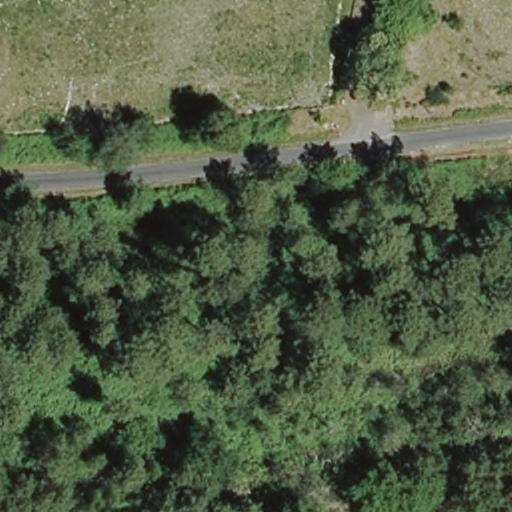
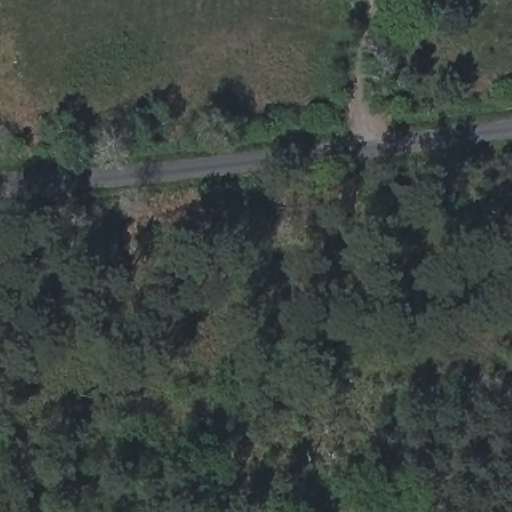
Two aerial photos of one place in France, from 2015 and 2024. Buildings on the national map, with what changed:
[]

